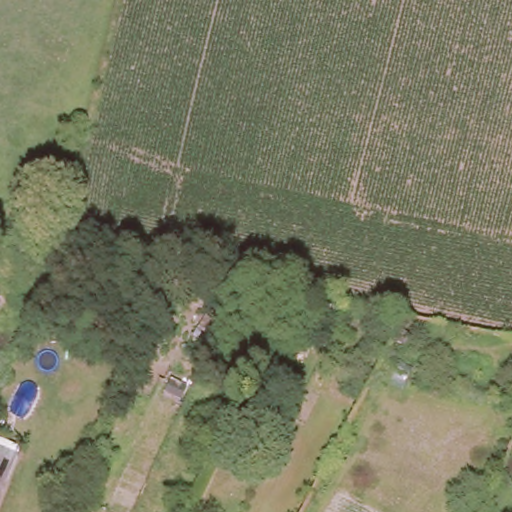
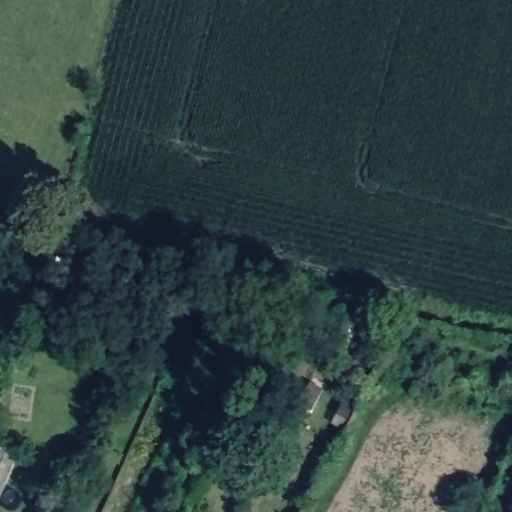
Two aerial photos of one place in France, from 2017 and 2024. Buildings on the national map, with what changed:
unchanged [(21,458),(0,508),(0,448),(21,458)]

